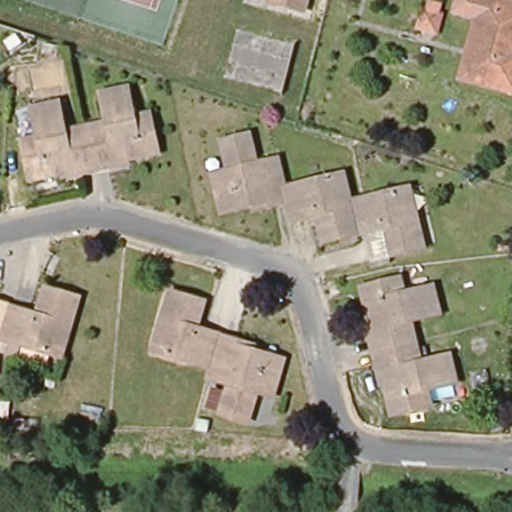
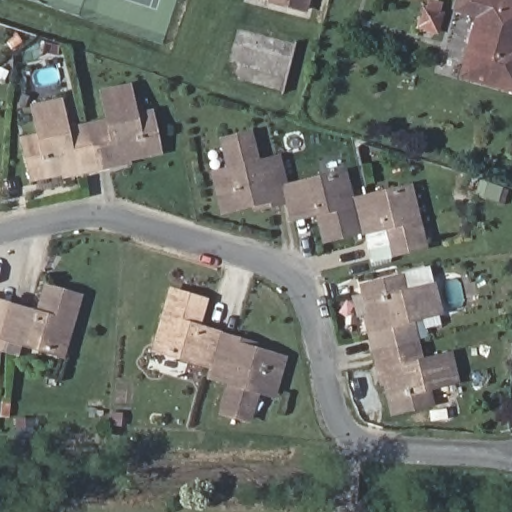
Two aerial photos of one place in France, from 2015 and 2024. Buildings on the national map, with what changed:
unchanged [(269,6),(271,0),(307,0),(302,16),(269,6)]
unchanged [(467,87),(480,28),(460,24),(465,0),(512,0),(512,13),(512,96),(467,87)]
unchanged [(113,128),(107,98),(133,92),(140,122),(155,119),(163,156),(131,163),(130,154),(120,155),(123,170),(114,172),(112,168),(99,170),(91,132),(113,128)]
unchanged [(27,145),(43,142),(37,113),(63,106),(70,136),(91,132),(99,170),(86,173),(87,178),(77,180),(74,165),(65,167),(67,177),(35,183),(27,145)]
unchanged [(278,199),(280,204),(270,207),(266,192),(257,194),(259,204),(227,211),(219,174),(235,170),(227,140),(254,134),(261,164),(282,159),(289,188),(291,197),(278,199)]
unchanged [(312,182),(313,187),(327,184),(326,179),(348,174),(355,202),(361,229),(362,231),(362,233),(327,240),(323,224),(331,223),(328,213),(312,217),(311,210),(295,214),(293,204),(291,197),(289,188),(312,182)]
unchanged [(368,199),(378,196),(380,201),(393,198),(392,193),(415,188),(428,247),(393,254),(390,239),(397,237),(395,227),(379,230),(377,224),(361,229),(355,202),(368,199)]
unchanged [(40,311),(44,301),(35,299),(39,282),(73,293),(56,350),(34,344),(35,339),(22,335),(21,340),(0,334),(0,325),(0,306),(5,308),(21,313),(24,306),(40,311)]
unchanged [(377,341),(372,342),(370,333),(385,329),(382,319),(373,322),(365,290),(403,282),(406,298),(436,290),(442,317),(413,324),(418,345),(380,354),(377,341)]
unchanged [(192,359),(195,354),(181,351),(180,356),(157,349),(175,292),(209,302),(204,318),(196,315),(194,326),(210,330),(209,336),(225,340),(216,367),(192,359)]
unchanged [(237,344),(239,339),(249,342),(245,356),(254,359),(256,349),(287,359),(277,395),(262,391),(254,420),(227,413),(236,384),(213,377),(216,367),(225,340),(237,344)]
unchanged [(418,345),(423,367),(452,360),(458,387),(429,393),(432,409),(395,418),(387,386),(397,384),(395,374),(380,378),(378,368),(383,367),(380,354),(418,345)]

